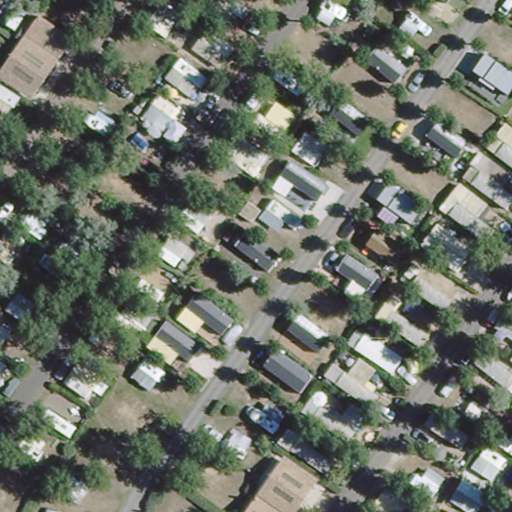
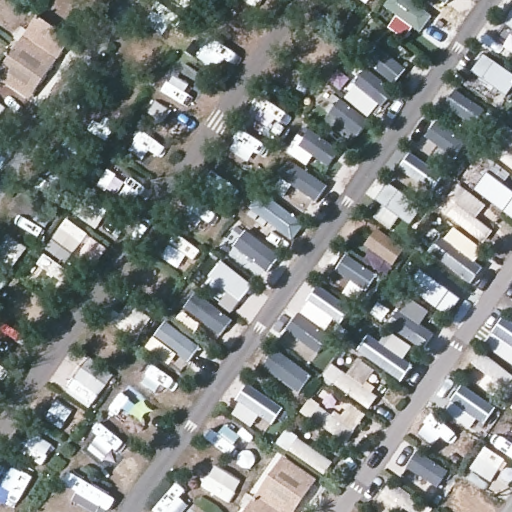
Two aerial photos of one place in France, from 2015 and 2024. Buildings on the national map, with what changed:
unchanged [(30,21),(62,42),(27,95),(0,77),(0,67),(30,21)]
unchanged [(310,483),(292,512),(248,512),(279,463),(310,483)]

